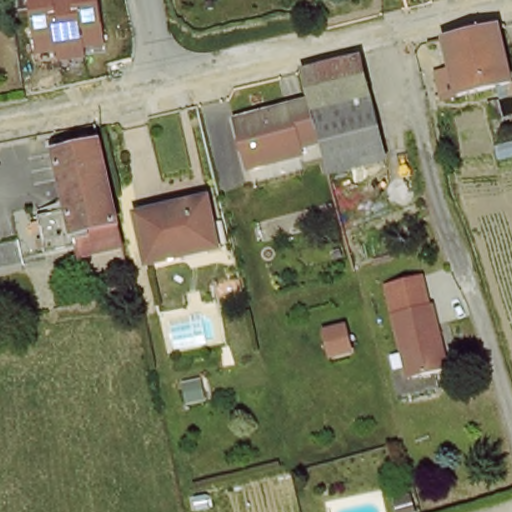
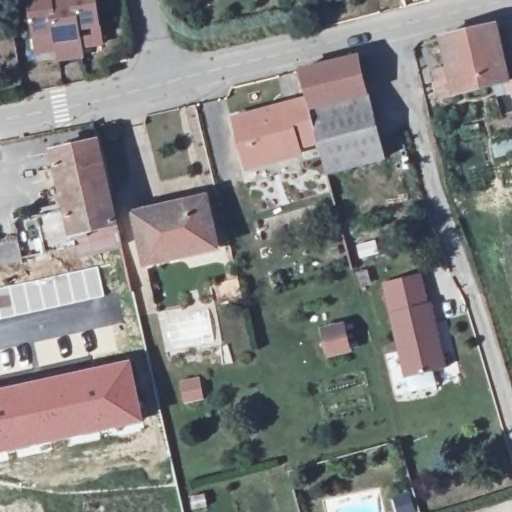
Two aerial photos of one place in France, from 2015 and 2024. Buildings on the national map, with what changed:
unchanged [(86,50),(88,60),(61,62),(60,52),(39,55),(32,0),(98,0),(105,47),(86,50)]
unchanged [(512,111),(502,81),(451,92),(438,36),(492,24),(507,79),(512,77),(512,111)]
unchanged [(309,97),(301,70),(359,56),(385,160),(330,174),(321,139),(309,97)]
unchanged [(321,139),(299,144),(300,150),(246,164),(234,116),(309,97),(321,139)]
unchanged [(124,241),(80,250),(77,238),(48,245),(40,210),(68,202),(54,145),(99,135),(124,241)]
unchanged [(186,251),(149,260),(139,210),(173,202),(174,206),(209,200),(214,215),(219,236),(211,238),(183,244),(186,251)]
unchanged [(23,262),(0,268),(0,248),(18,245),(23,262)]
new [(104,297),(18,316),(0,319),(0,287),(98,265),(104,297)]
unchanged [(242,303),(223,308),(218,285),(236,281),(242,303)]
unchanged [(443,350),(403,361),(385,297),(424,286),(443,350)]
new [(146,423),(63,443),(0,456),(0,387),(132,358),(146,423)]
new [(199,375),(204,398),(183,403),(178,380),(199,375)]

